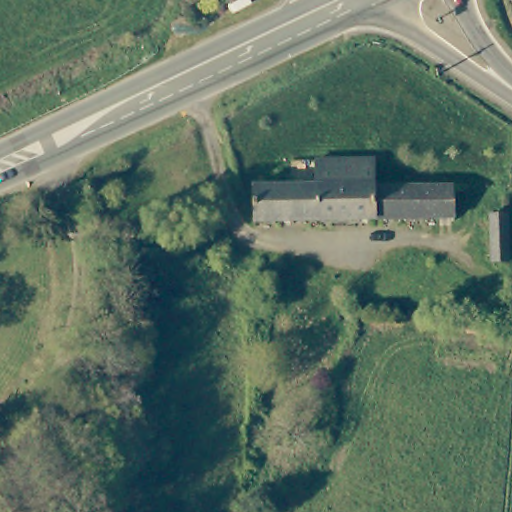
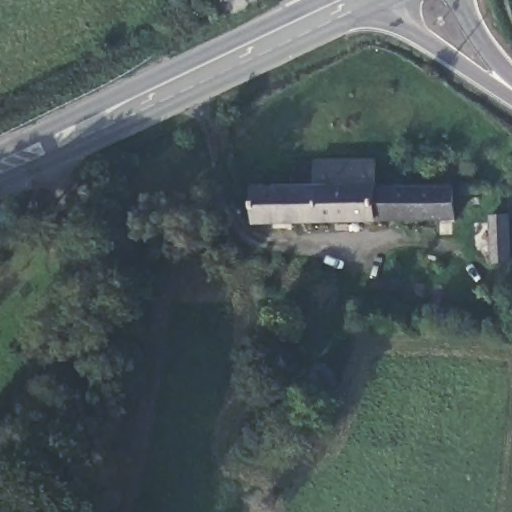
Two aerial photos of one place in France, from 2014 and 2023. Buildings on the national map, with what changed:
unchanged [(227,1),(227,0),(228,0),(227,1)]
unchanged [(454,222),(258,224),(257,190),(318,189),(318,163),(318,162),(374,162),(375,189),(381,189),(455,189),(454,222)]
unchanged [(509,206),(512,252),(512,260),(490,260),(487,211),(509,206)]
unchanged [(294,386),(315,392),(306,434),(287,430),(284,429),(288,410),(294,386)]

